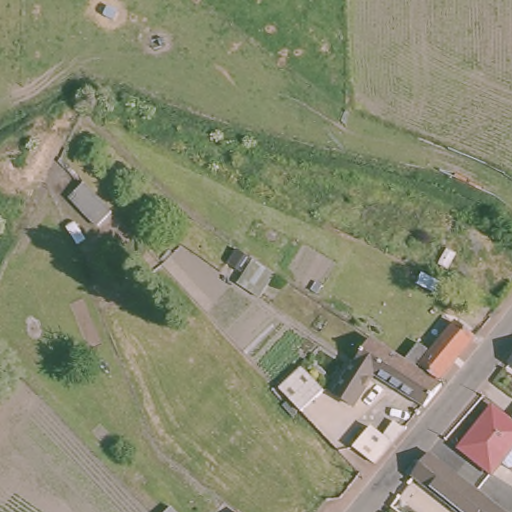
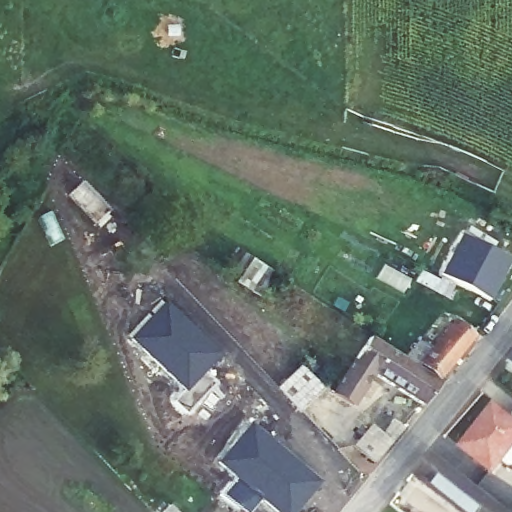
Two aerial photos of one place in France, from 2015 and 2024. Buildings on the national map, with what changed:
unchanged [(80,175),(92,188),(107,204),(93,217),(66,189),(80,175)]
new [(491,299),(440,274),(459,234),(509,259),(491,299)]
unchanged [(226,252),(232,243),(248,253),(266,266),(251,290),(231,276),(239,262),(226,252)]
new [(165,303),(215,361),(187,392),(131,340),(165,303)]
unchanged [(418,345),(432,353),(454,323),(473,336),(441,379),(422,365),(420,367),(408,359),(418,345)]
unchanged [(369,339),(441,385),(423,406),(370,369),(349,400),(334,389),(369,339)]
unchanged [(512,350),(512,360),(507,356),(512,350)]
unchanged [(301,367),(323,390),(301,411),(279,388),(301,367)]
unchanged [(512,418),(512,440),(491,466),(460,442),(493,402),(512,418)]
new [(319,483),(295,512),(276,512),(259,499),(249,512),(245,512),(223,494),(237,477),(218,462),(250,425),(319,483)]
unchanged [(355,433),(361,437),(366,431),(378,440),(391,426),(403,434),(374,467),(351,452),(357,444),(351,439),(355,433)]
unchanged [(494,498),(503,488),(512,495),(512,512),(463,512),(416,476),(434,453),(493,499),(494,498)]
unchanged [(225,502),(238,512),(217,512),(225,502)]
unchanged [(170,504),(178,512),(162,512),(170,504)]

